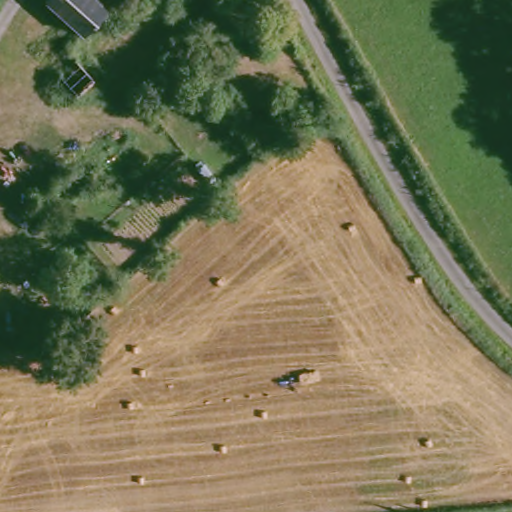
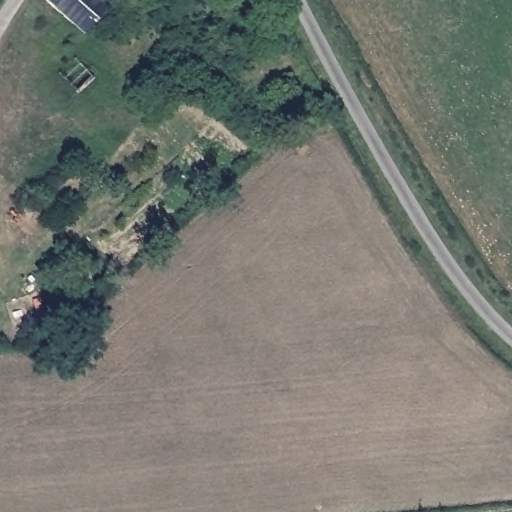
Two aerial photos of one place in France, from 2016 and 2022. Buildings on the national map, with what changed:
unchanged [(86,41),(50,13),(55,7),(48,0),(93,0),(111,17),(86,41)]
unchanged [(96,79),(69,98),(43,66),(67,48),(96,79)]

